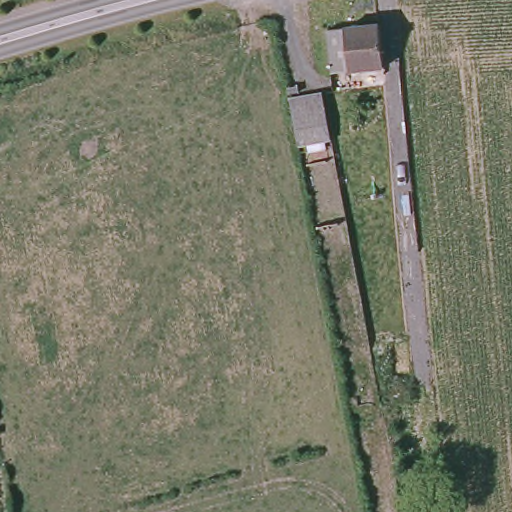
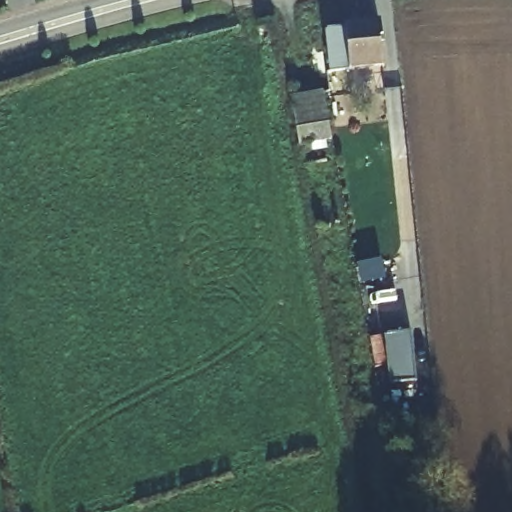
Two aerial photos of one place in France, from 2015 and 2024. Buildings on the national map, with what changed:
unchanged [(379,23),(386,66),(333,76),(324,30),(379,23)]
unchanged [(306,100),(312,136),(290,142),(284,104),(306,100)]
new [(412,332),(417,381),(390,384),(384,334),(412,332)]

